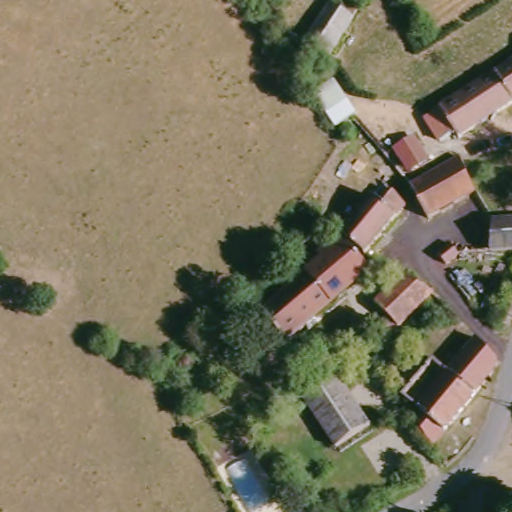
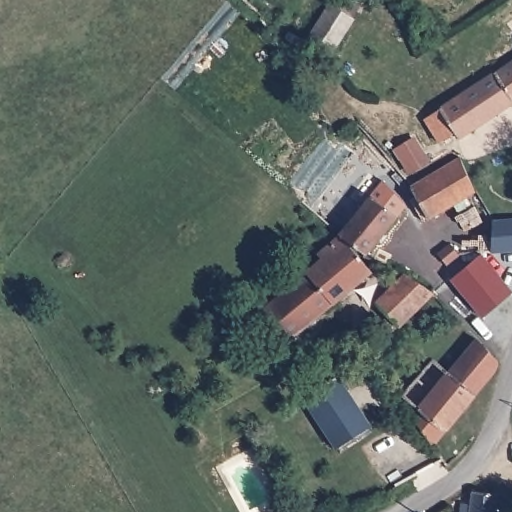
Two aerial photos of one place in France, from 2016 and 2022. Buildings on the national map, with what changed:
unchanged [(338,56),(315,42),(340,1),(346,5),(349,0),(365,0),(370,3),(338,56)]
unchanged [(462,128),(448,138),(432,115),(447,105),(512,60),(512,105),(467,136),(462,128)]
unchanged [(427,171),(425,167),(410,147),(427,135),(437,150),(444,160),(427,171)]
unchanged [(463,157),(482,189),(435,216),(418,185),(424,181),(463,157)]
unchanged [(380,190),(390,199),(397,191),(413,209),(370,255),(370,256),(347,229),(380,190)]
unchanged [(488,218),(512,217),(512,249),(493,250),(488,218)]
unchanged [(322,259),(317,251),(345,229),(375,275),(332,308),(303,273),(322,259)]
unchanged [(448,245),(455,257),(442,265),(435,252),(448,245)]
new [(477,256),(510,293),(482,318),(448,281),(477,256)]
unchanged [(332,308),(325,313),(290,341),(263,306),(303,273),(332,308)]
unchanged [(435,293),(393,332),(385,323),(393,316),(380,300),(408,273),(435,293)]
unchanged [(437,445),(416,414),(484,338),(502,360),(437,445)]
unchanged [(338,373),(372,424),(338,447),(305,395),(338,373)]
unchanged [(500,500),(500,509),(508,509),(508,512),(464,512),(464,507),(474,508),(475,495),(500,498),(500,500)]

